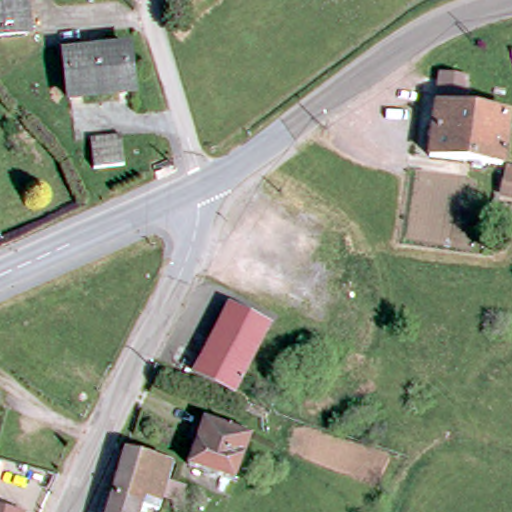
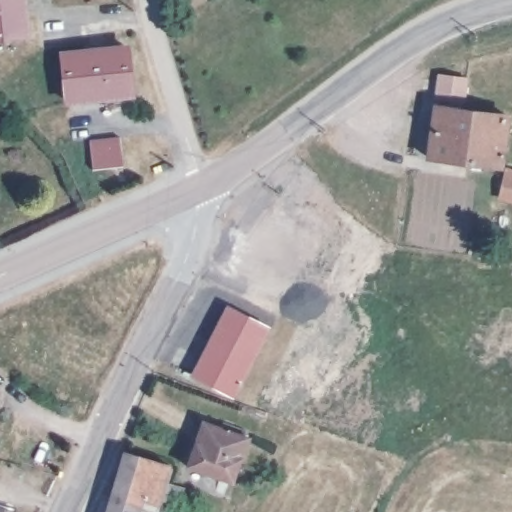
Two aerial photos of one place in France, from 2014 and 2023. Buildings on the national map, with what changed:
unchanged [(0,38),(0,0),(20,0),(24,35),(0,38)]
unchanged [(123,50),(126,95),(65,99),(62,55),(123,50)]
unchanged [(438,93),(441,75),(467,78),(465,96),(438,93)]
unchanged [(498,150),(496,161),(424,152),(432,100),(456,104),(480,108),(504,111),(498,150)]
unchanged [(87,145),(115,139),(120,166),(92,171),(87,145)]
unchanged [(497,184),(500,169),(502,162),(512,165),(512,188),(498,185),(497,184)]
unchanged [(192,378),(228,307),(270,328),(234,400),(192,378)]
unchanged [(244,438),(228,482),(185,465),(200,422),(244,438)]
unchanged [(125,452),(152,460),(153,460),(138,511),(138,512),(107,512),(125,452)]
unchanged [(153,460),(172,465),(159,512),(142,512),(138,511),(153,460)]
unchanged [(0,510),(9,512),(0,512),(0,510)]

